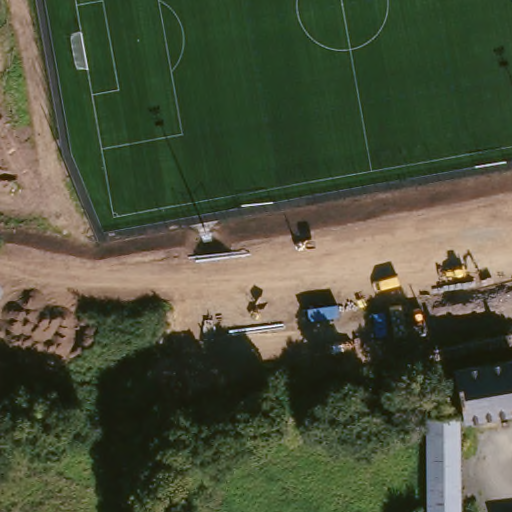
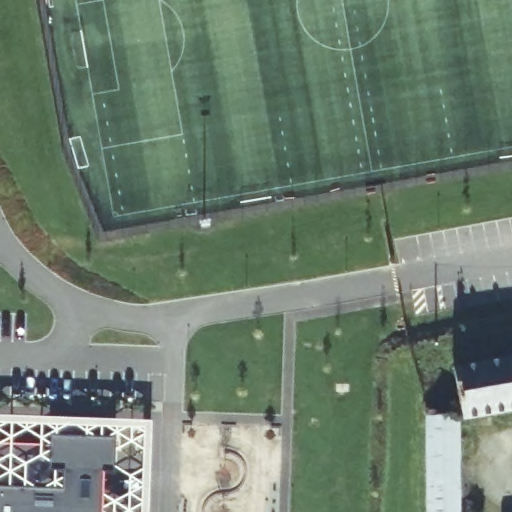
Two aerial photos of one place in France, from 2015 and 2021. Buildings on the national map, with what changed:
unchanged [(419,397),(419,391),(450,387),(445,357),(512,348),(512,408),(453,416),(459,512),(423,512),(419,397)]
new [(150,423),(148,512),(0,512),(0,418),(150,423)]

